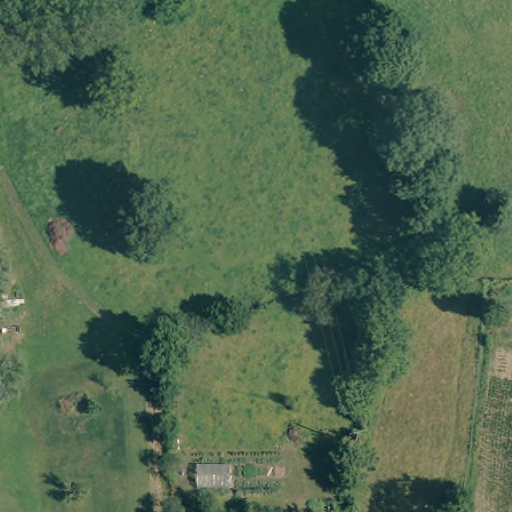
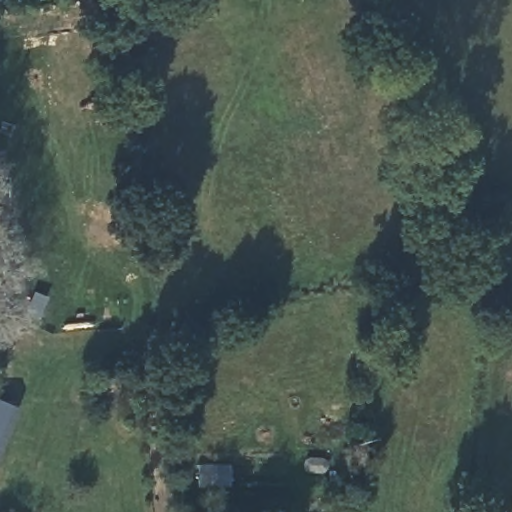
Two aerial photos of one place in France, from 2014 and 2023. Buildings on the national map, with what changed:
new [(20,407),(0,457),(0,399),(20,407)]

